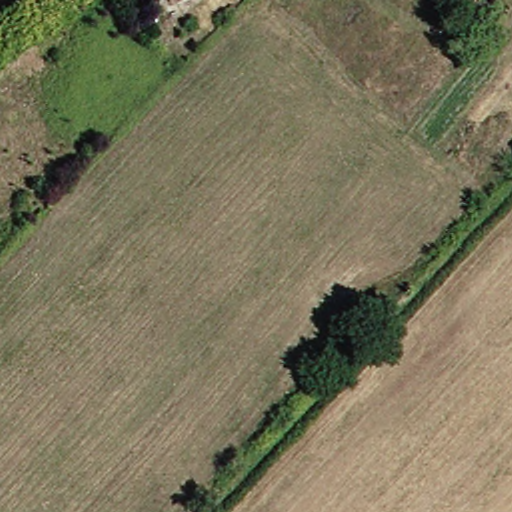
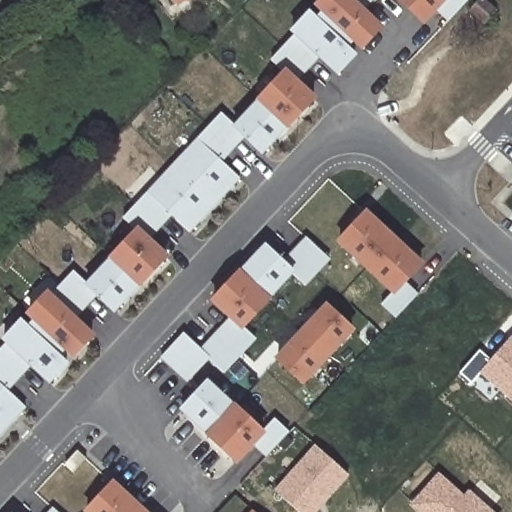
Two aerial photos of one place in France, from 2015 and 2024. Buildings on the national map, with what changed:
new [(385,27),(362,51),(353,43),(348,48),(357,57),(338,78),(317,58),(298,79),(318,99),(288,130),(287,129),(262,157),(243,139),(222,162),(240,179),(189,234),(172,217),(149,238),(170,257),(140,289),(138,287),(114,315),(95,296),(76,317),(97,336),(74,360),(65,352),(60,356),(70,366),(50,387),(28,367),(8,391),(26,408),(0,436),(0,347),(3,343),(0,340),(20,319),(27,325),(32,321),(24,314),(48,290),(50,293),(73,270),(86,283),(108,259),(107,258),(136,228),(121,219),(221,113),(233,126),(256,101),(255,100),(284,70),(269,60),(292,35),(289,31),(309,10),(316,18),(321,13),(313,6),(319,0),(371,0),(363,9),(385,27)]
unchanged [(178,0),(183,0),(179,3),(178,0)]
new [(436,12),(424,26),(398,0),(469,0),(448,23),(436,12)]
unchanged [(466,9),(474,0),(486,0),(492,5),(479,20),(466,9)]
new [(367,210),(422,261),(405,279),(418,292),(398,314),(384,301),(395,289),(341,238),(367,210)]
new [(265,246),(282,263),(306,238),(328,259),(242,351),(219,330),(231,318),(214,300),(265,246)]
new [(328,305),(353,330),(305,381),(279,358),(328,305)]
new [(183,334),(201,350),(213,338),(235,358),(218,377),(204,363),(187,381),(162,357),(183,334)]
new [(471,384),(459,374),(479,350),(490,360),(511,336),(512,336),(512,403),(480,374),(471,384)]
new [(208,382),(262,434),(274,421),(288,434),(267,456),(253,443),(236,462),(182,411),(208,382)]
new [(274,491),(314,445),(349,476),(318,512),(298,512),(274,491)]
new [(409,505),(438,472),(463,495),(469,489),(493,512),(416,512),(409,505)]
new [(113,484),(144,512),(87,512),(113,484)]
new [(54,509),(57,512),(51,512),(54,509)]
new [(252,511),(254,512),(251,512),(252,511)]

